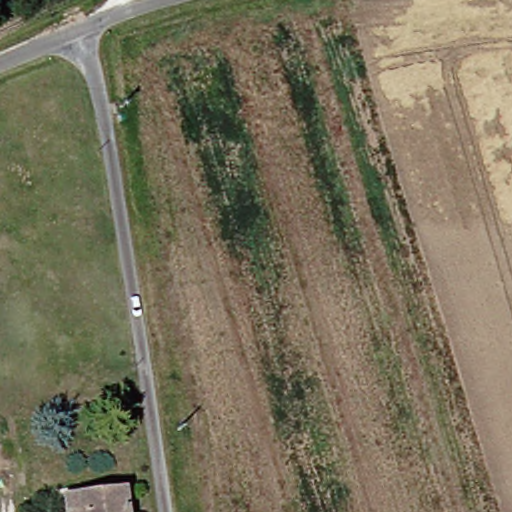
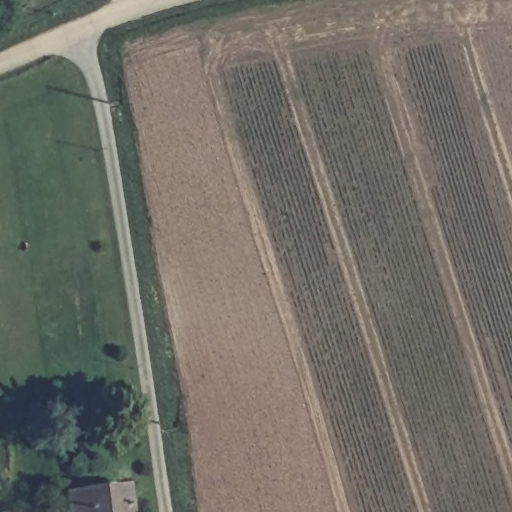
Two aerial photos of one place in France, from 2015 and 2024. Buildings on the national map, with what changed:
unchanged [(68,491),(80,490),(131,483),(134,512),(71,512),(70,503),(68,491)]

